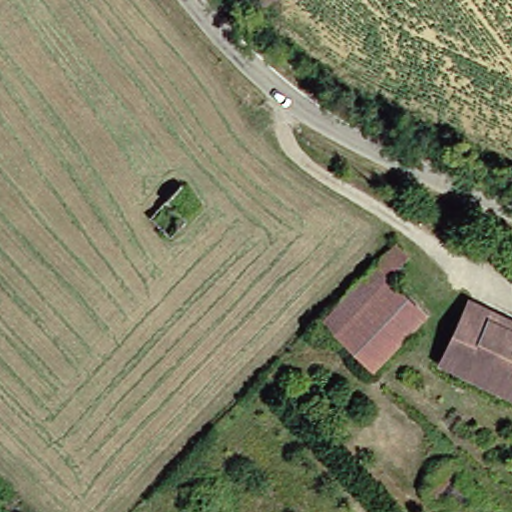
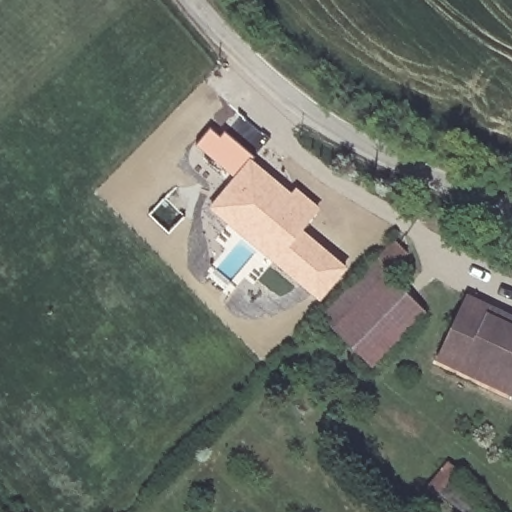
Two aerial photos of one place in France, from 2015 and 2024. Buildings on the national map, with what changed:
new [(219,137),(224,131),(255,159),(254,161),(292,192),(295,187),(323,210),(304,231),(349,269),(320,302),(209,207),(234,179),(197,145),(211,129),(219,137)]
unchanged [(393,357),(379,371),(326,318),(381,262),(401,241),(416,258),(396,279),(434,315),(393,357)]
unchanged [(479,295),(503,308),(512,313),(512,386),(451,353),(479,295)]
unchanged [(444,365),(451,353),(512,386),(512,401),(444,365)]

